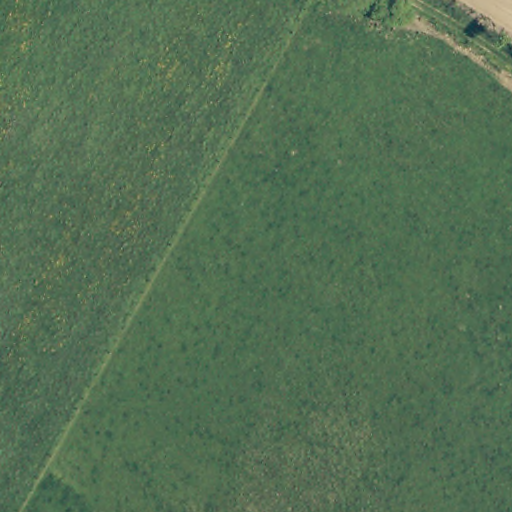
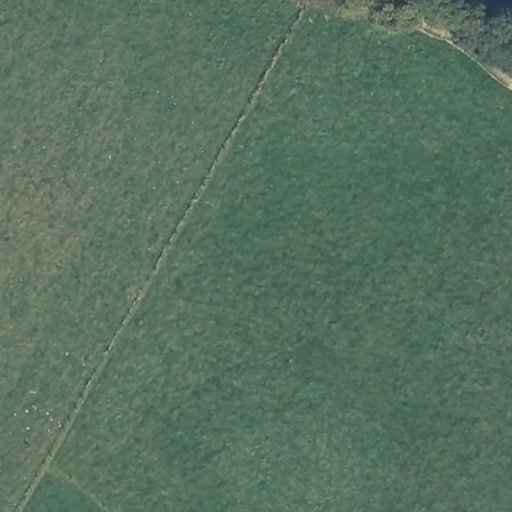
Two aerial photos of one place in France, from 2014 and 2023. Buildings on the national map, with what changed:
[]

